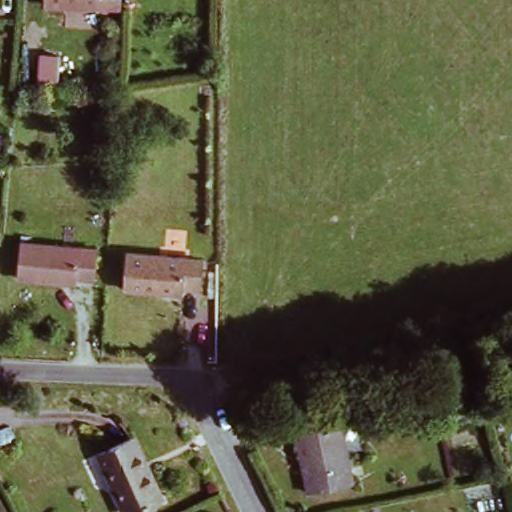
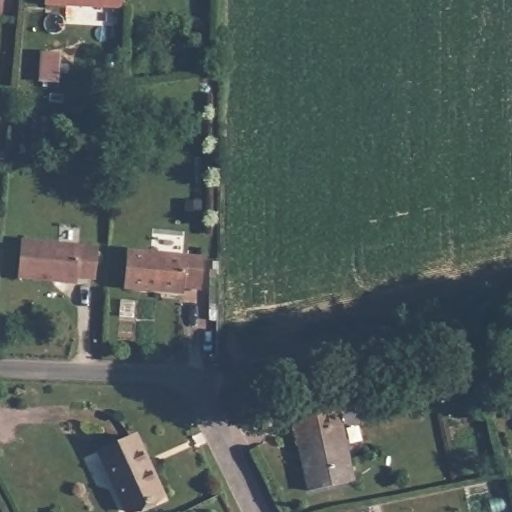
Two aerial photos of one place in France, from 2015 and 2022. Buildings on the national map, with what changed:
unchanged [(107,7),(36,0),(108,0),(107,7)]
unchanged [(56,276),(21,273),(24,240),(58,242),(56,276)]
unchanged [(96,245),(94,272),(74,271),(73,277),(56,276),(58,242),(96,245)]
unchanged [(183,286),(131,284),(133,248),(203,250),(203,279),(183,279),(183,286)]
unchanged [(436,391),(473,384),(474,399),(439,408),(436,391)]
unchanged [(349,480),(306,489),(290,412),(334,403),(349,480)]
unchanged [(166,490),(130,508),(101,449),(136,431),(166,490)]

